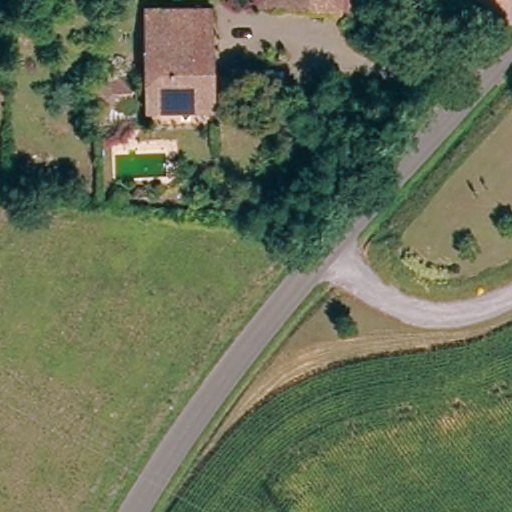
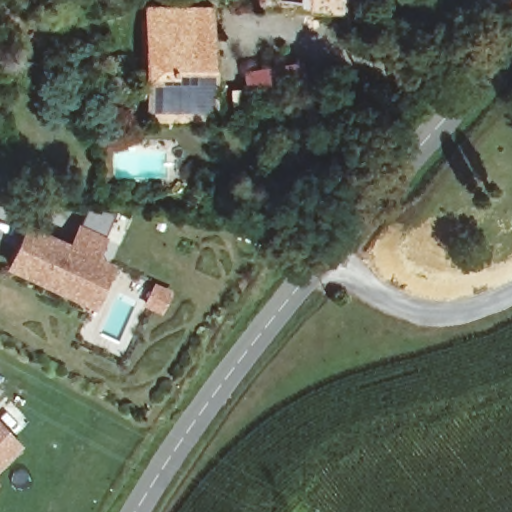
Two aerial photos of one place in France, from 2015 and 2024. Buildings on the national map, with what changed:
unchanged [(257,0),(344,0),(344,17),(257,9),(257,0)]
unchanged [(144,95),(144,6),(209,11),(213,98),(213,103),(148,105),(144,95)]
unchanged [(86,73),(133,74),(134,95),(85,97),(86,73)]
new [(25,229),(70,248),(79,229),(89,209),(118,212),(104,241),(95,261),(112,268),(91,314),(3,274),(25,229)]
new [(154,290),(168,297),(159,314),(146,308),(154,290)]
new [(0,465),(0,423),(21,444),(0,465)]

